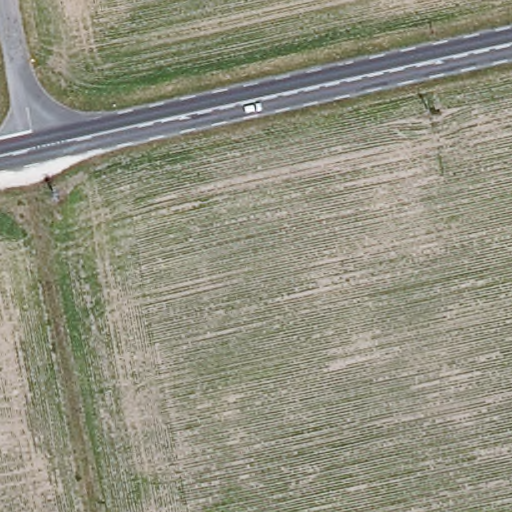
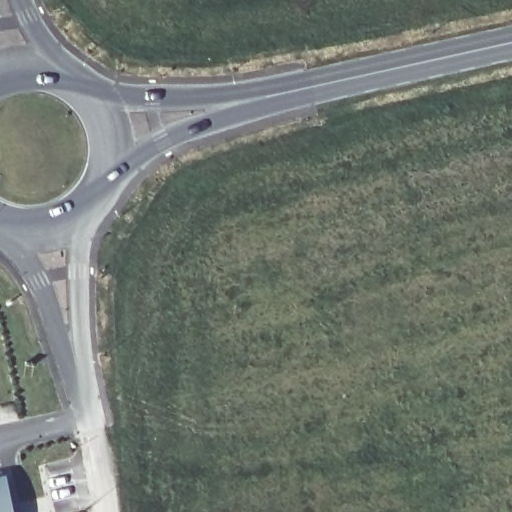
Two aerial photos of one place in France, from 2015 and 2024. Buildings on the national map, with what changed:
new [(11,512),(0,512),(0,477),(3,476),(11,512)]

